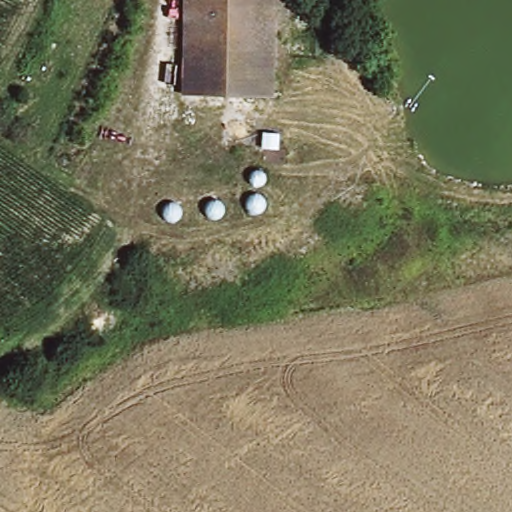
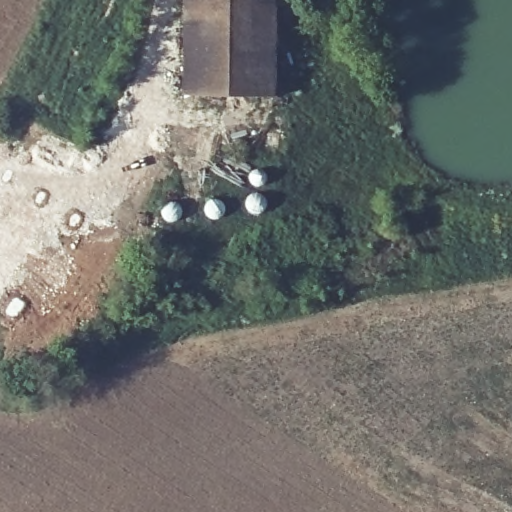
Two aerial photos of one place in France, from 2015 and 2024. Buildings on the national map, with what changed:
unchanged [(267,99),(179,94),(184,0),(293,0),(292,8),(272,7),(267,99)]
unchanged [(239,205),(242,201),(249,199),(256,201),(258,203),(260,210),(258,217),(256,219),(249,221),(242,219),(240,217),(237,210),(239,205)]

